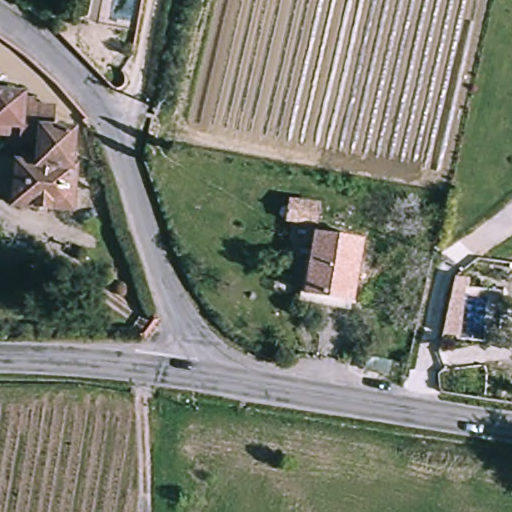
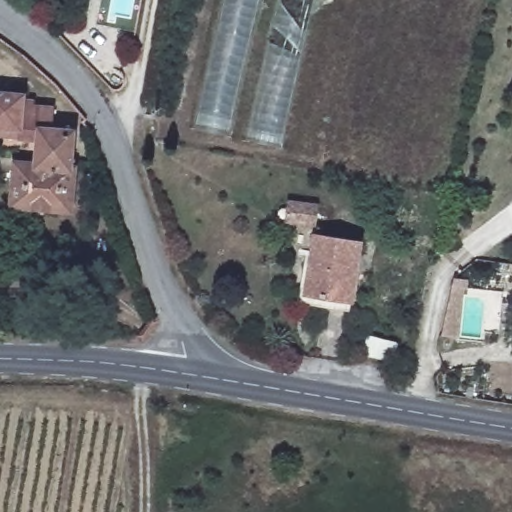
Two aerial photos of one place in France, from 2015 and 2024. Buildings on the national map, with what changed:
new [(195,126),(224,0),(261,0),(231,135),(195,126)]
new [(247,138),(279,0),(318,0),(284,146),(247,138)]
unchanged [(0,105),(19,106),(19,117),(54,119),(53,130),(72,132),(69,167),(36,165),(38,141),(16,139),(0,138),(0,105)]
unchanged [(69,167),(74,168),(71,210),(12,206),(15,164),(36,165),(69,167)]
unchanged [(363,245),(351,304),(303,295),(315,235),(363,245)]
unchanged [(467,289),(457,348),(440,345),(451,286),(467,289)]

